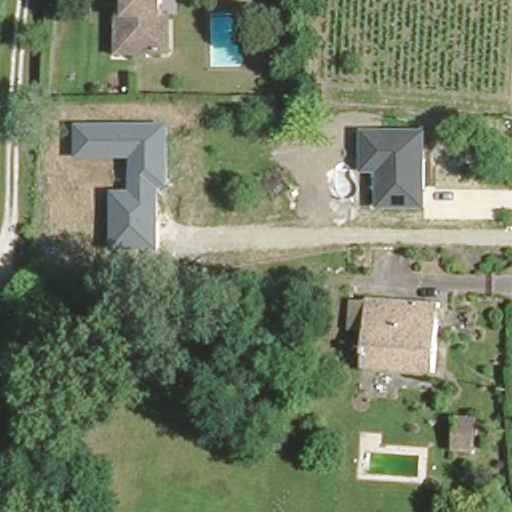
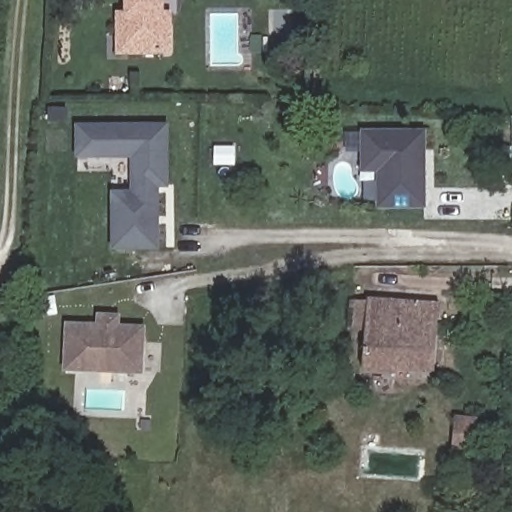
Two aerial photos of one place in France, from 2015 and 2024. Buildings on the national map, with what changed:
unchanged [(115,17),(126,16),(125,0),(159,0),(160,3),(149,4),(150,14),(160,13),(171,12),(173,49),(163,50),(127,52),(117,53),(116,37),(115,17)]
unchanged [(171,187),(160,187),(160,251),(114,251),(114,190),(129,190),(130,157),(76,159),(75,124),(167,123),(171,187)]
unchanged [(429,209),(381,209),(380,173),(361,172),(362,128),(428,128),(429,209)]
unchanged [(360,366),(360,356),(362,328),(344,327),(345,297),(364,301),(364,297),(436,302),(430,371),(360,366)]
new [(97,323),(98,313),(121,313),(121,324),(146,326),(144,375),(63,372),(65,322),(97,323)]
unchanged [(472,446),(457,445),(451,445),(452,414),(459,415),(474,416),(472,446)]

